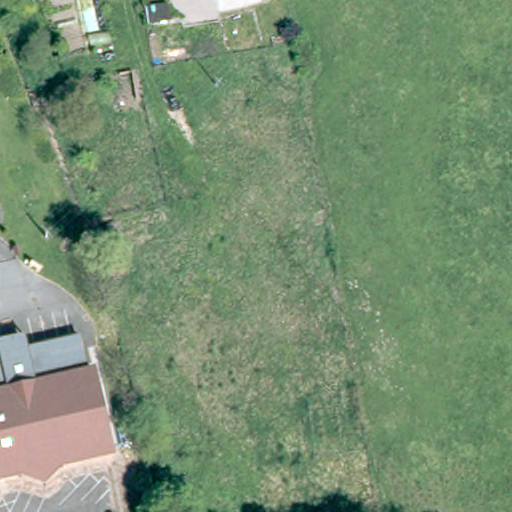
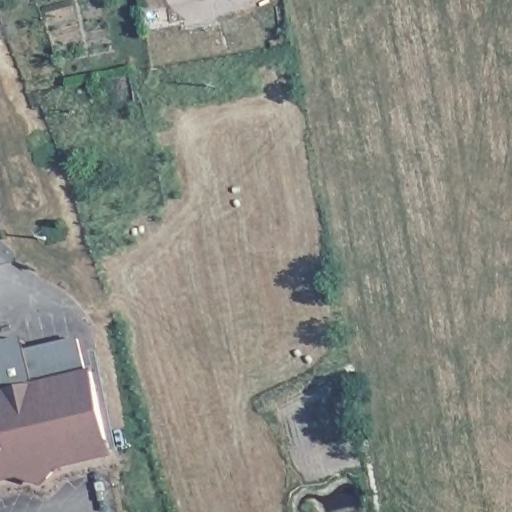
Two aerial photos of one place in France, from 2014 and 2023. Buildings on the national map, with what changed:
unchanged [(176,18),(179,32),(155,37),(155,35),(153,23),(176,18)]
unchanged [(4,365),(4,364),(4,362),(4,361),(5,360),(5,358),(6,358),(7,357),(8,356),(8,355),(9,355),(9,354),(10,353),(11,352),(13,352),(13,351),(14,351),(15,351),(16,351),(18,350),(19,350),(20,350),(22,351),(23,351),(24,351),(25,351),(26,352),(27,352),(28,353),(28,354),(29,355),(30,355),(31,356),(31,357),(32,358),(33,359),(33,360),(84,349),(92,383),(100,381),(116,465),(64,477),(47,493),(25,485),(0,491),(0,367),(4,366),(4,365)]

